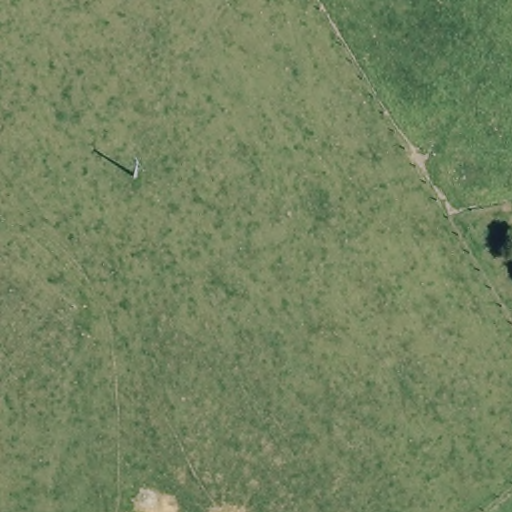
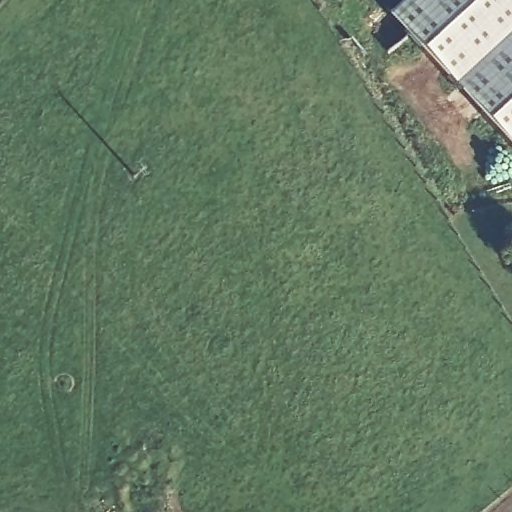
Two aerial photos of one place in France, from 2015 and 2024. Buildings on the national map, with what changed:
new [(512,0),(512,149),(390,14),(405,0),(512,0)]

